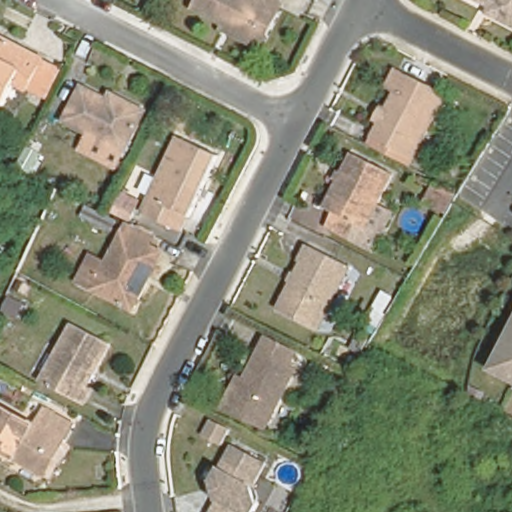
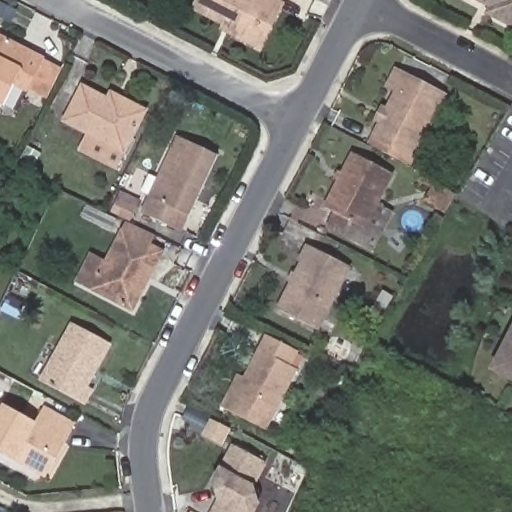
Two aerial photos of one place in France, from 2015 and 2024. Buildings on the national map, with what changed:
unchanged [(221,28),(224,23),(194,8),(198,0),(287,0),(286,3),(290,5),(266,51),(221,28)]
unchanged [(512,18),(492,7),(479,0),(512,0),(512,18)]
unchanged [(53,82),(37,73),(25,66),(6,104),(0,102),(0,31),(4,33),(47,55),(63,63),(53,82)]
unchanged [(373,143),(378,131),(386,117),(381,115),(389,99),(394,101),(402,87),(392,81),(403,61),(455,89),(415,164),(384,148),(373,143)]
unchanged [(82,152),(90,135),(65,122),(84,85),(110,98),(112,93),(150,111),(127,154),(119,171),(82,152)]
unchanged [(217,152),(189,211),(184,208),(176,225),(134,206),(142,189),(147,191),(175,132),(217,152)]
unchanged [(326,201),(337,179),(332,176),(337,166),(342,169),(352,150),(396,172),(382,199),(397,207),(385,232),(368,224),(360,219),(352,235),(327,222),(336,206),(326,201)]
unchanged [(453,189),(443,205),(422,193),(431,177),(453,189)]
unchanged [(105,262),(124,219),(110,212),(116,201),(131,208),(125,219),(154,234),(150,243),(157,247),(163,249),(147,282),(133,314),(91,293),(80,287),(93,257),(105,262)]
unchanged [(357,266),(326,328),(281,305),(312,243),(357,266)]
unchanged [(2,244),(0,249),(0,244),(2,244)]
unchanged [(114,341),(91,382),(99,386),(91,401),(44,375),(75,319),(114,341)]
unchanged [(298,346),(293,357),(300,361),(268,421),(222,398),(240,363),(246,367),(266,329),(298,346)]
unchanged [(502,359),(503,360),(512,344),(512,383),(495,373),(502,359)]
unchanged [(42,472),(0,450),(0,403),(37,421),(46,405),(77,420),(68,439),(49,475),(42,472)]
unchanged [(248,484),(254,498),(247,512),(202,512),(212,492),(207,477),(226,438),(262,456),(248,484)]

